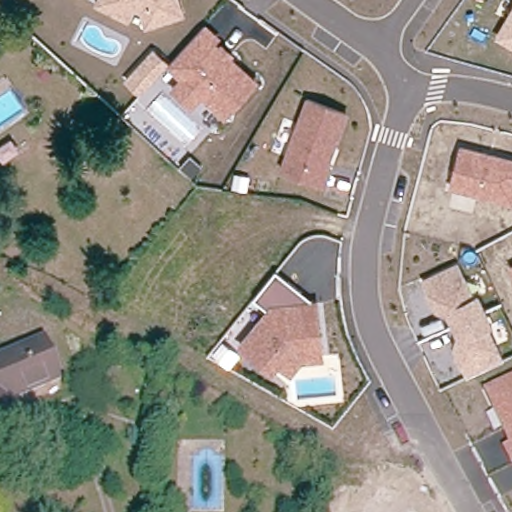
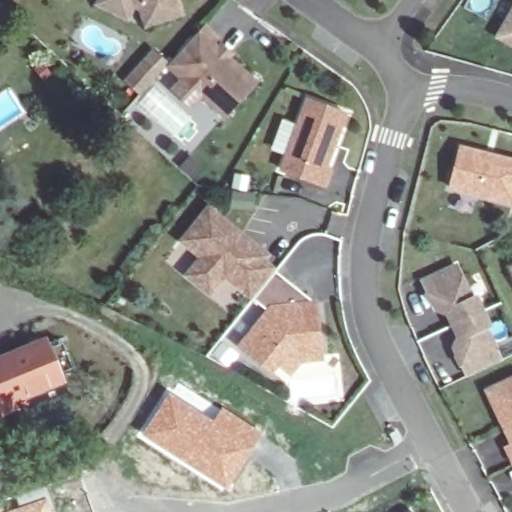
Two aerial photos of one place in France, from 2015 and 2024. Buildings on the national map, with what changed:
unchanged [(144,25),(139,9),(134,9),(128,20),(94,2),(94,0),(180,0),(184,12),(144,25)]
unchanged [(512,5),(512,47),(494,36),(512,5)]
unchanged [(153,46),(169,59),(204,23),(219,34),(214,40),(218,44),(220,41),(233,52),(231,55),(258,79),(223,117),(200,98),(191,108),(169,87),(179,78),(165,65),(139,93),(123,79),(153,46)]
unchanged [(347,110),(328,165),(333,168),(326,189),(278,170),(305,96),(347,110)]
unchanged [(512,157),(512,207),(448,191),(458,144),(512,157)]
new [(269,255),(264,262),(274,272),(252,299),(224,276),(210,295),(184,274),(197,255),(179,240),(209,204),(269,255)]
unchanged [(457,260),(474,294),(478,292),(494,325),(489,328),(503,358),(464,376),(451,349),(457,337),(445,314),(434,312),(419,277),(457,260)]
unchanged [(512,262),(512,275),(508,264),(512,262)]
unchanged [(265,309),(252,299),(274,272),(309,300),(318,299),(323,360),(303,362),(292,375),(279,366),(271,374),(236,345),(265,309)]
unchanged [(0,358),(48,346),(59,384),(5,399),(7,404),(0,406),(0,358)]
unchanged [(512,464),(501,446),(508,442),(483,389),(512,374),(512,464)]
new [(168,389),(169,391),(176,381),(219,408),(220,406),(264,433),(227,492),(139,434),(168,389)]
new [(56,512),(0,512),(0,499),(45,484),(56,512)]

